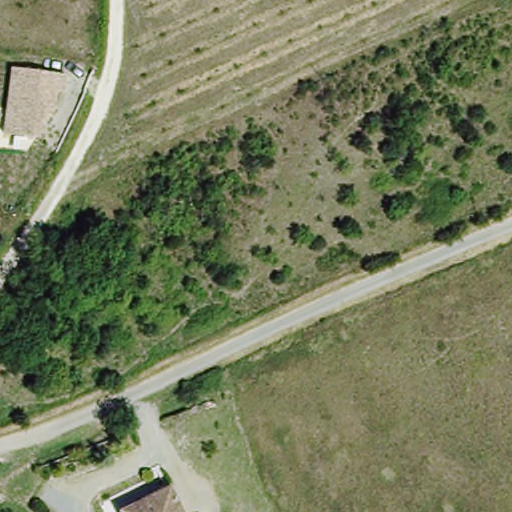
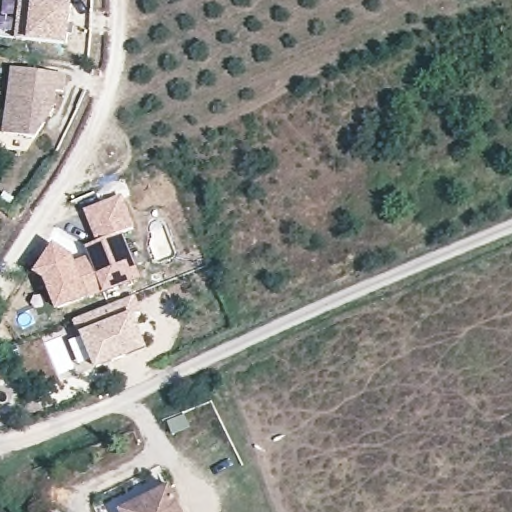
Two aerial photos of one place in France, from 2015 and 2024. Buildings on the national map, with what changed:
new [(19,0),(42,0),(70,2),(66,43),(15,39),(19,0)]
unchanged [(68,74),(65,94),(57,93),(54,111),(36,138),(4,134),(11,68),(68,74)]
new [(122,195),(134,228),(122,234),(96,242),(83,208),(122,195)]
new [(96,242),(122,234),(140,278),(102,293),(87,254),(84,246),(96,242)]
new [(53,242),(70,252),(77,259),(87,254),(102,293),(55,311),(43,280),(33,273),(53,242)]
new [(134,296),(139,310),(135,312),(148,349),(94,369),(90,360),(79,336),(72,320),(134,296)]
unchanged [(170,512),(121,512),(161,492),(170,512)]

